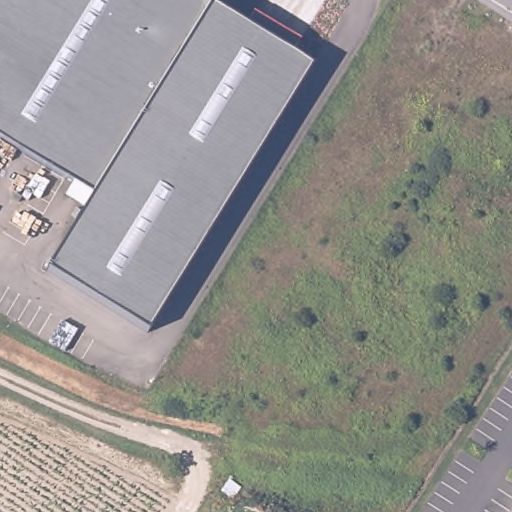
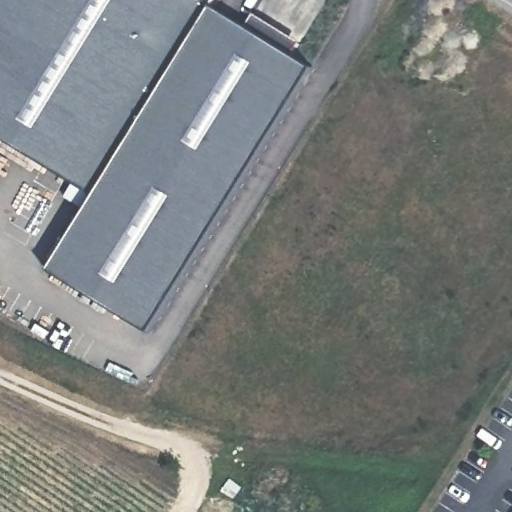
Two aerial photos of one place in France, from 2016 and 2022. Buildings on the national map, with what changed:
unchanged [(73,183),(0,138),(0,0),(214,0),(212,4),(246,25),(254,13),(300,41),(292,54),(313,67),(150,333),(48,270),(86,209),(65,196),(73,183)]

